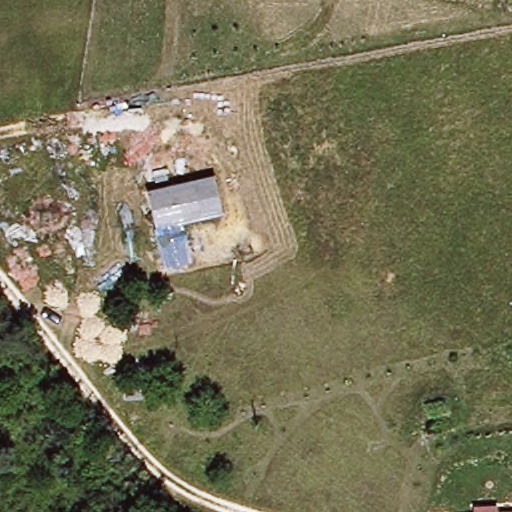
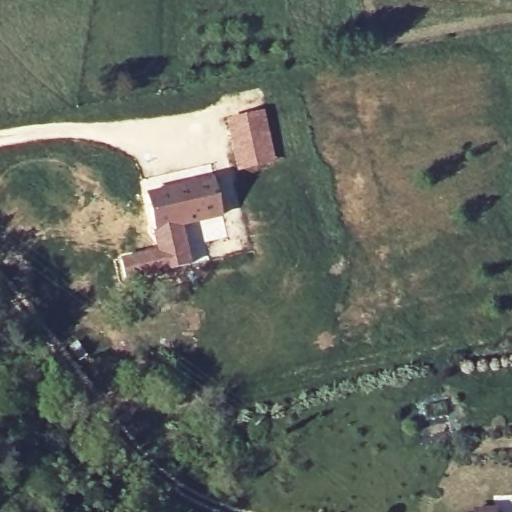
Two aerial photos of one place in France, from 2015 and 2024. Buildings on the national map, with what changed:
new [(265,107),(277,162),(237,171),(226,116),(265,107)]
unchanged [(215,177),(224,215),(182,223),(191,262),(164,268),(147,192),(215,177)]
unchanged [(496,512),(472,512),(472,506),(496,505),(496,512)]

